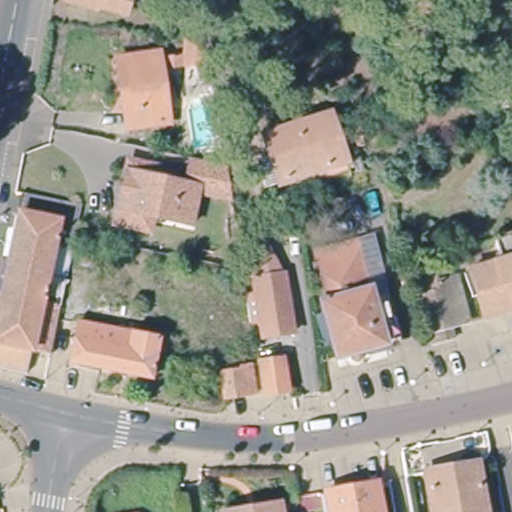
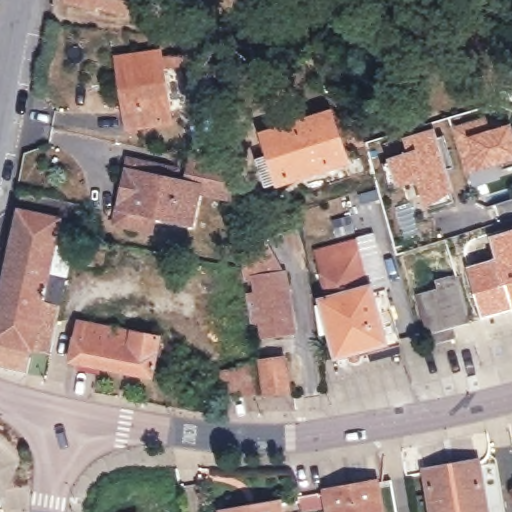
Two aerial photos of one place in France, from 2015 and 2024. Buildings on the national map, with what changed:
unchanged [(101,6),(100,10),(65,0),(133,0),(129,12),(101,6)]
unchanged [(200,64),(184,62),(188,41),(204,42),(209,43),(212,65),(200,64)]
unchanged [(116,58),(159,52),(171,122),(127,129),(125,113),(120,84),(116,58)]
unchanged [(175,56),(177,67),(168,68),(166,58),(175,56)]
unchanged [(328,115),(343,162),(277,183),(262,136),(328,115)]
new [(489,131),(511,124),(512,129),(512,160),(484,169),(484,174),(469,179),(453,125),(485,116),(489,131)]
new [(454,192),(426,207),(419,182),(397,186),(389,159),(409,152),(405,138),(435,129),(454,192)]
unchanged [(227,163),(232,193),(205,188),(206,180),(188,177),(191,156),(227,163)]
unchanged [(114,219),(117,208),(128,157),(149,162),(175,167),(174,178),(199,183),(191,222),(153,215),(150,227),(114,219)]
unchanged [(23,188),(83,200),(76,231),(49,348),(22,343),(21,350),(29,352),(24,374),(0,368),(0,288),(4,273),(23,188)]
demolished [(379,214),(386,239),(372,243),(364,218),(379,214)]
unchanged [(86,257),(86,234),(88,221),(104,221),(104,238),(103,258),(86,257)]
unchanged [(498,260),(493,240),(512,234),(512,307),(482,316),(469,269),(498,260)]
unchanged [(357,237),(368,277),(339,285),(341,292),(381,281),(397,335),(364,345),(366,351),(363,357),(355,359),(349,356),(348,349),(335,353),(320,298),(327,296),(314,250),(357,237)]
unchanged [(267,238),(282,265),(292,323),(261,328),(259,312),(249,314),(244,286),(255,284),(253,271),(243,273),(242,269),(239,243),(267,238)]
unchanged [(440,370),(431,339),(417,291),(429,287),(428,282),(437,279),(435,274),(455,268),(468,314),(449,320),(452,332),(461,364),(440,370)]
unchanged [(75,321),(156,336),(149,376),(67,361),(75,321)]
unchanged [(279,352),(284,383),(264,386),(259,356),(279,352)]
unchanged [(244,400),(242,387),(222,390),(219,367),(238,362),(237,359),(249,357),(254,386),(256,397),(244,400)]
unchanged [(432,512),(426,471),(476,464),(484,512),(432,512)]
unchanged [(386,512),(329,512),(326,485),(382,477),(386,512)]
unchanged [(281,508),(282,512),(258,512),(258,511),(281,508)]

